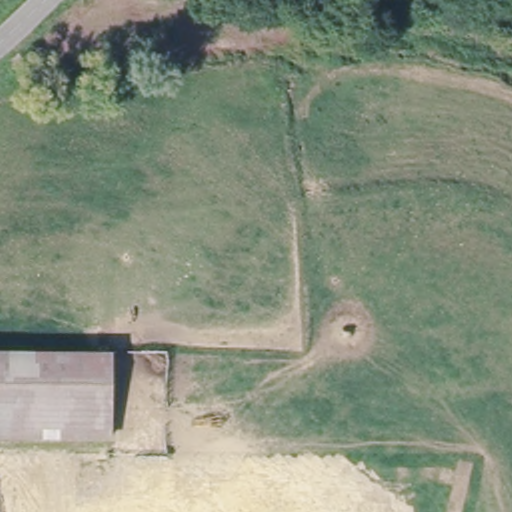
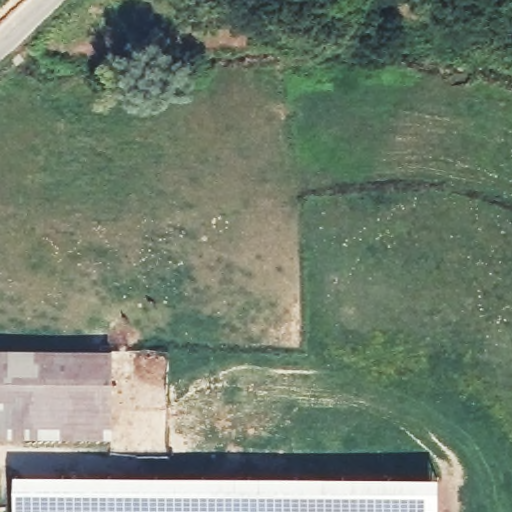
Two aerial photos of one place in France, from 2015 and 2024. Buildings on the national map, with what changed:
unchanged [(116,351),(114,428),(0,423),(0,346),(116,351)]
new [(439,476),(439,512),(15,512),(15,472),(439,476)]

